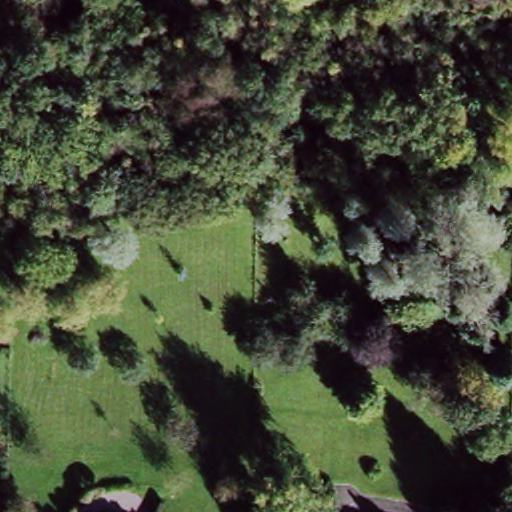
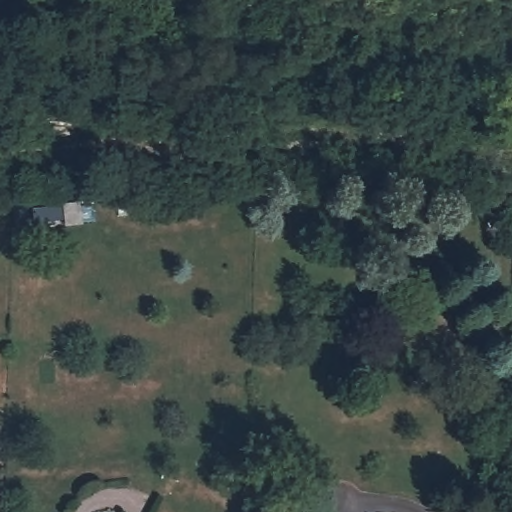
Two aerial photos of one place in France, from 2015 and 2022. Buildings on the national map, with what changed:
unchanged [(409,194),(368,192),(369,176),(409,178),(409,194)]

